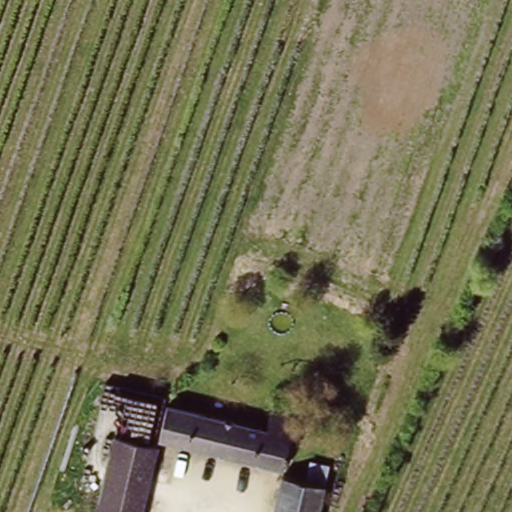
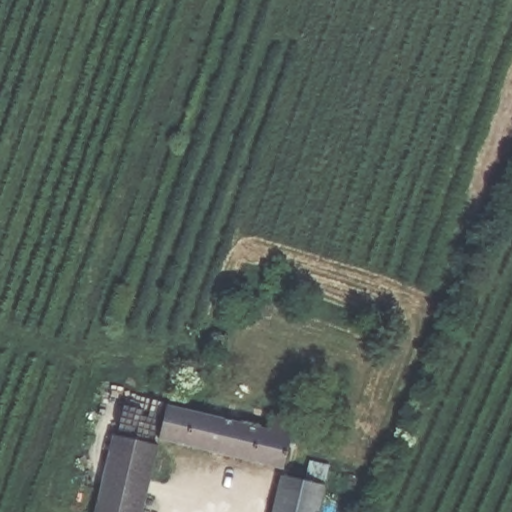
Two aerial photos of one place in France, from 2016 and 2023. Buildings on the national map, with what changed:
unchanged [(102,472),(69,465),(78,430),(91,433),(103,380),(166,393),(164,406),(294,435),(286,471),(324,480),(317,512),(270,512),(280,469),(156,441),(140,512),(93,512),(102,472)]

